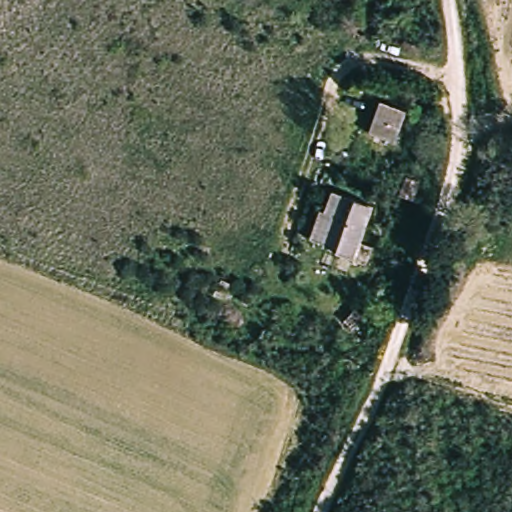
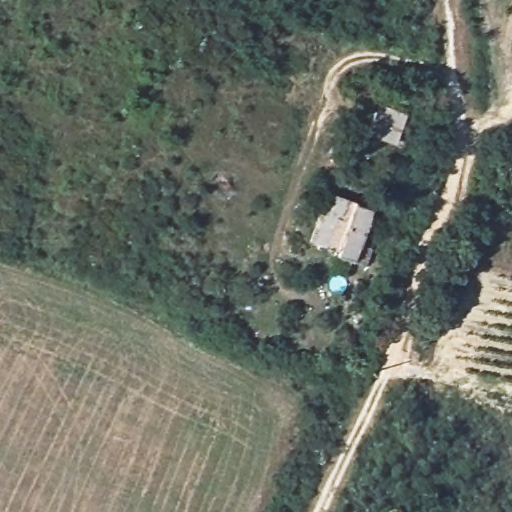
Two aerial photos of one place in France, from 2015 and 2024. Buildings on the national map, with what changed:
unchanged [(409,111),(399,143),(365,136),(378,103),(409,111)]
unchanged [(356,245),(369,252),(361,270),(331,258),(335,250),(305,237),(317,207),(330,211),(337,190),(373,205),(356,245)]

